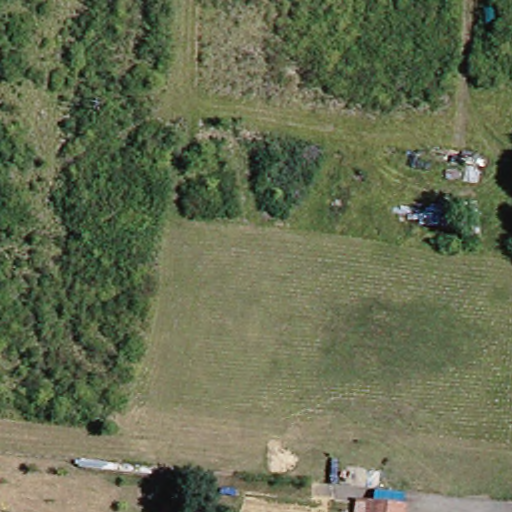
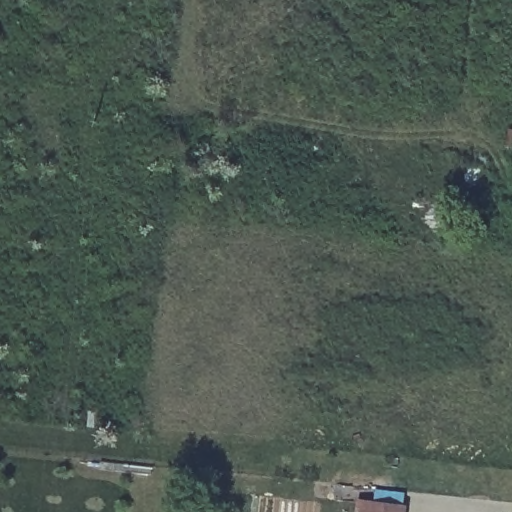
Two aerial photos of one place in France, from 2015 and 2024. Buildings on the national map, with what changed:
unchanged [(367,499),(400,503),(398,512),(351,512),(353,497),(367,499)]

